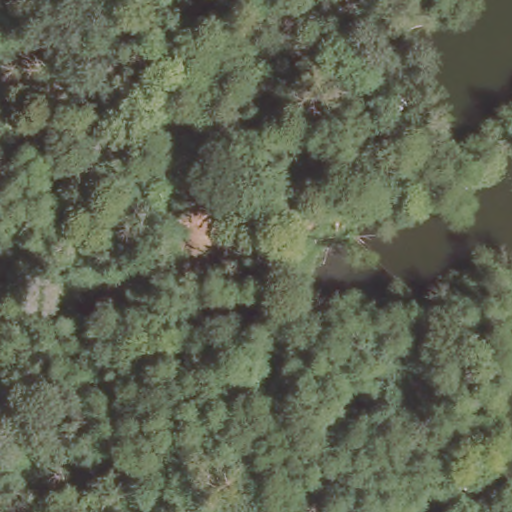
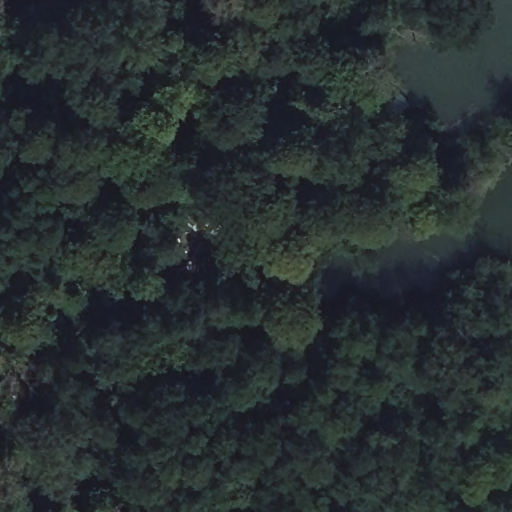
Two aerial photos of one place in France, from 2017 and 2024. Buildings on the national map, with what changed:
unchanged [(209,46),(196,61),(166,32),(180,19),(209,46)]
unchanged [(367,107),(353,128),(342,120),(357,100),(367,107)]
unchanged [(430,159),(424,148),(439,137),(447,147),(430,159)]

